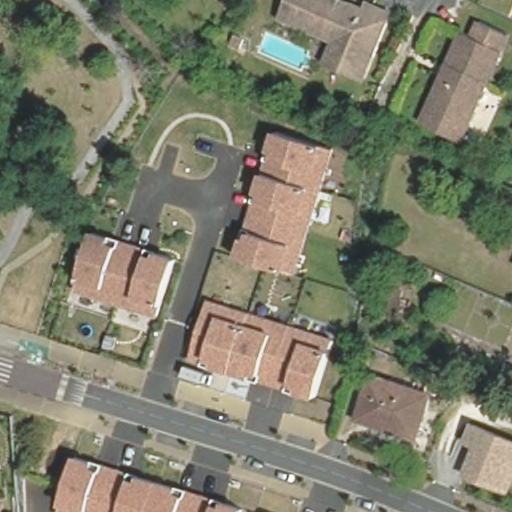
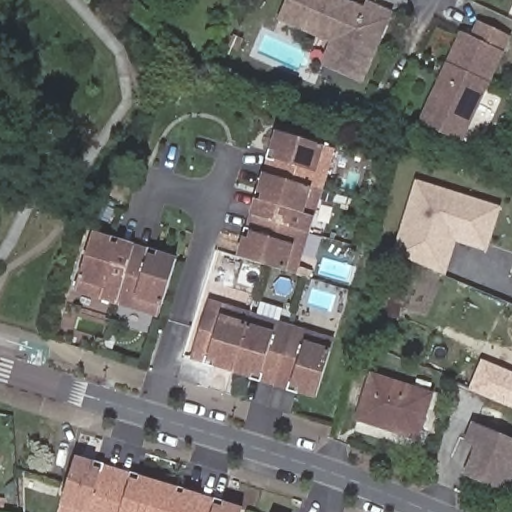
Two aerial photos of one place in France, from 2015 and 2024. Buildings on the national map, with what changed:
unchanged [(370,3),(391,13),(362,79),(340,70),(349,49),(280,19),(288,0),(342,0),(367,10),(370,3)]
unchanged [(460,35),(471,40),(477,25),(506,38),(468,121),(430,103),(437,87),(446,67),(460,35)]
unchanged [(468,121),(458,143),(419,126),(430,103),(468,121)]
unchanged [(236,257),(276,131),(338,146),(298,275),(236,257)]
new [(501,206),(487,252),(456,243),(446,275),(392,252),(415,179),(501,206)]
unchanged [(159,317),(76,292),(92,231),(177,258),(159,317)]
unchanged [(320,398),(189,360),(206,300),(337,337),(320,398)]
new [(512,409),(467,390),(481,359),(512,372),(512,409)]
unchanged [(412,438),(357,419),(372,378),(426,397),(412,438)]
unchanged [(512,484),(510,490),(468,474),(480,446),(469,442),(476,426),(512,441),(512,484)]
unchanged [(243,512),(60,512),(74,457),(245,506),(243,512)]

